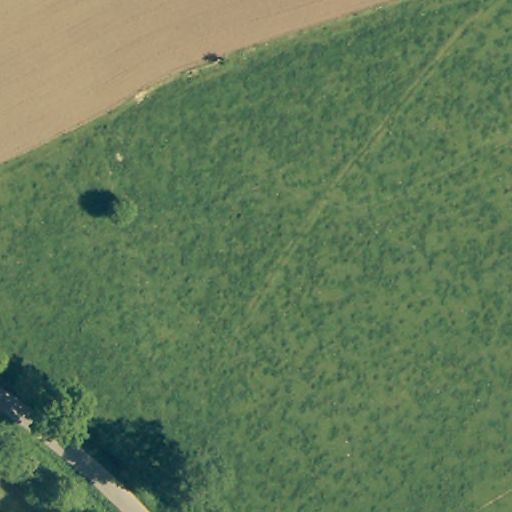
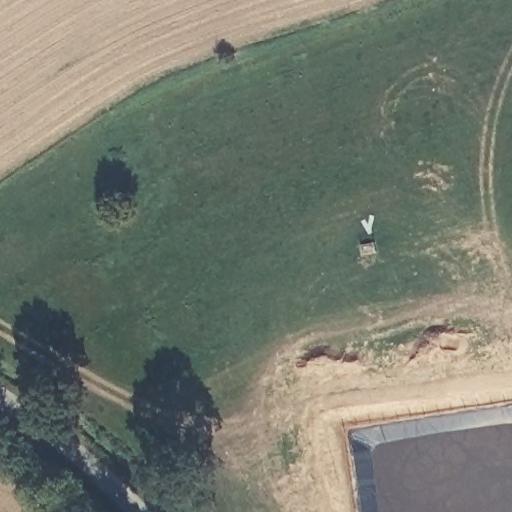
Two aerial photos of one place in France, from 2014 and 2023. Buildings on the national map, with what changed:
[]

